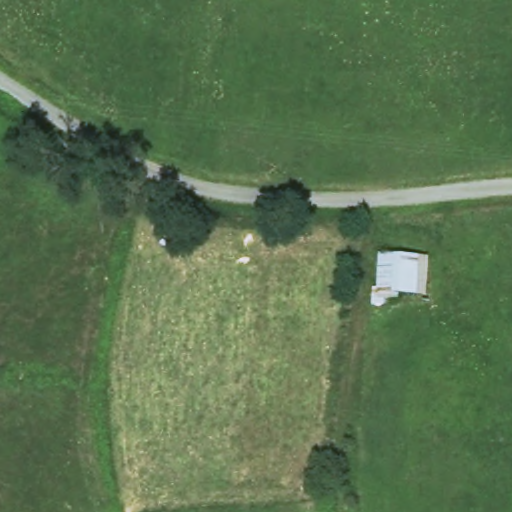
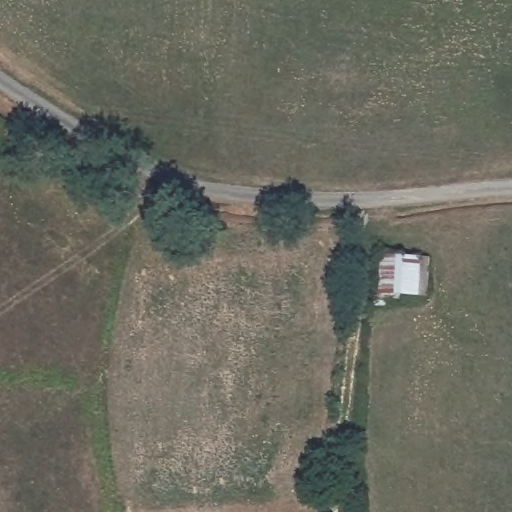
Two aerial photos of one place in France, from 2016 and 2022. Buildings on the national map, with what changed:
unchanged [(416,296),(374,295),(376,252),(418,255),(416,296)]

